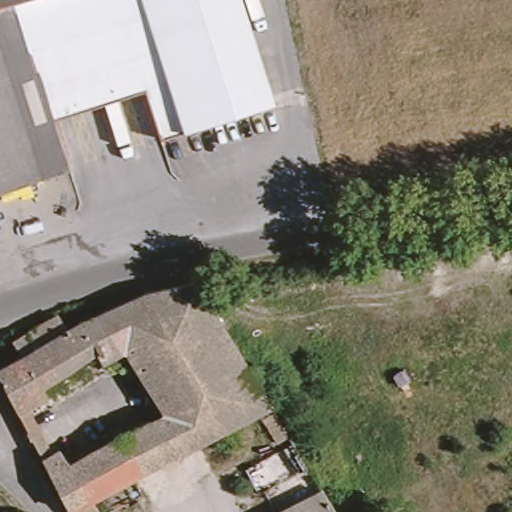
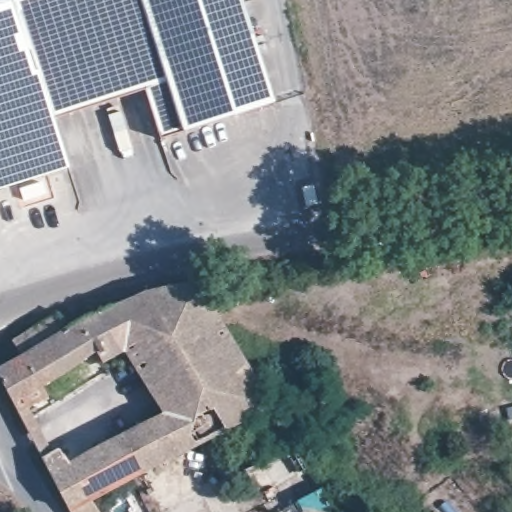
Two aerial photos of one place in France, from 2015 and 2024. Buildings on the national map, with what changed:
unchanged [(269,103),(183,128),(159,135),(142,85),(48,113),(63,166),(0,185),(0,0),(237,0),(269,103)]
unchanged [(262,417),(121,494),(127,512),(79,512),(50,464),(63,453),(72,470),(159,415),(128,357),(107,368),(99,363),(49,391),(51,400),(22,416),(0,376),(0,374),(20,359),(14,346),(63,319),(73,333),(147,293),(202,281),(277,406),(291,428),(275,438),(262,417)]
unchanged [(288,478),(274,457),(292,446),(305,469),(288,478)]
unchanged [(322,484),(339,512),(314,512),(303,492),(322,484)]
unchanged [(265,512),(303,492),(314,512),(265,512)]

